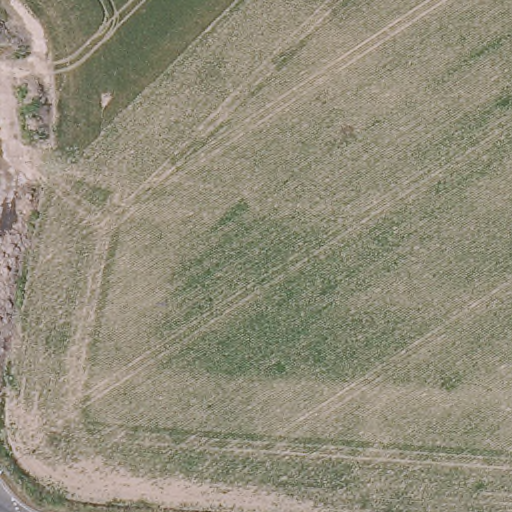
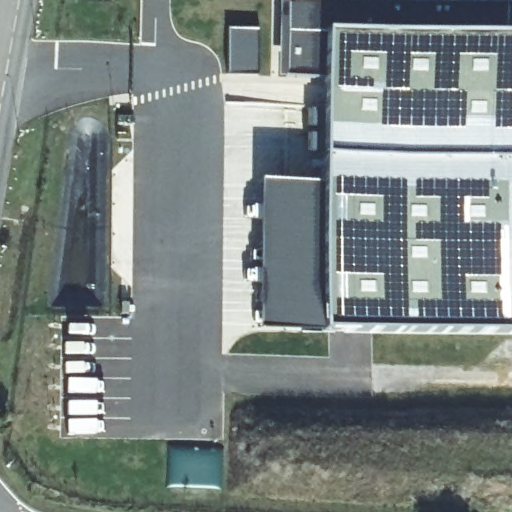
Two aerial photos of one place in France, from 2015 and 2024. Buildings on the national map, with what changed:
new [(252,334),(253,182),(317,181),(320,79),(276,78),(277,0),(512,0),(512,336),(252,334)]

